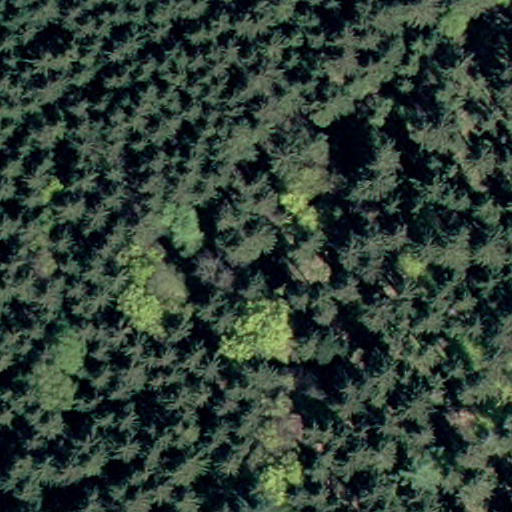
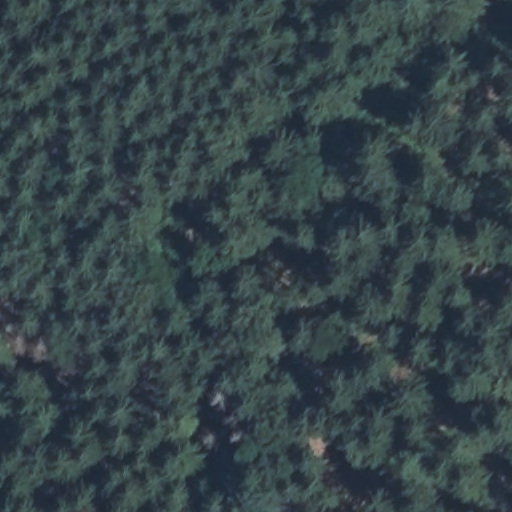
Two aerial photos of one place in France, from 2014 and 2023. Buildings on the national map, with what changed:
[]

